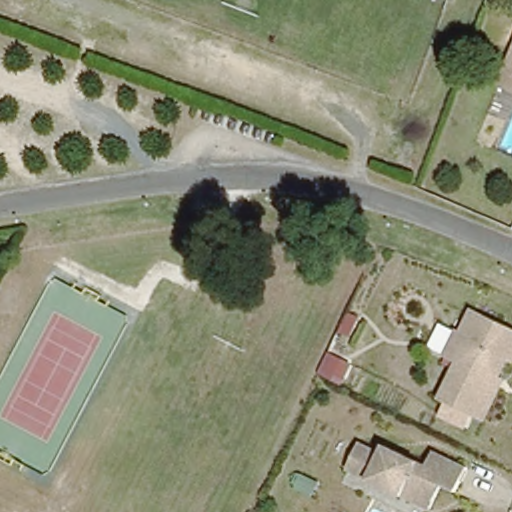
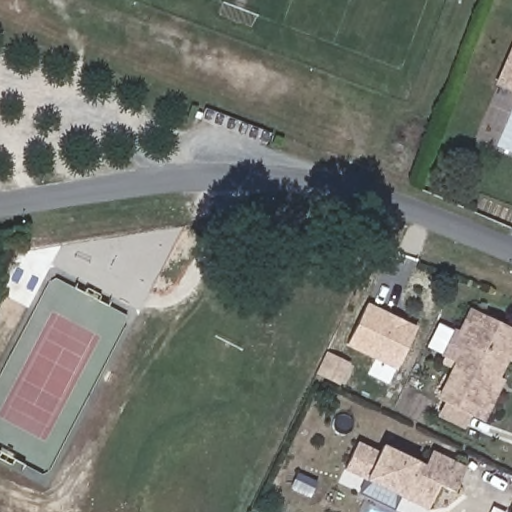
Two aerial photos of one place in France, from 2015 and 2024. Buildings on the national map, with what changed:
unchanged [(512,57),(512,86),(501,81),(512,57)]
new [(417,326),(395,370),(346,346),(367,303),(417,326)]
unchanged [(447,359),(442,354),(454,326),(460,328),(470,308),(512,329),(512,366),(485,423),(433,396),(447,359)]
unchanged [(413,501),(344,469),(357,442),(379,452),(382,444),(424,464),(431,450),(464,466),(452,490),(438,483),(427,508),(413,501)]

